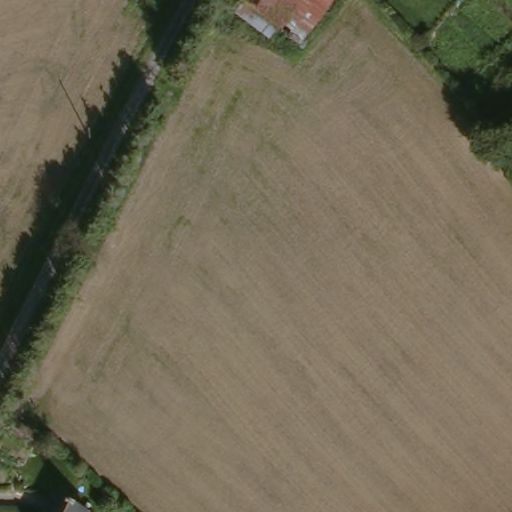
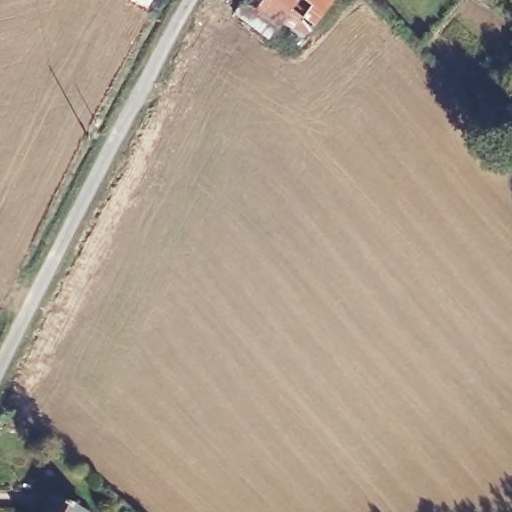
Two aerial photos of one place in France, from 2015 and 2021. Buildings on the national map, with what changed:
unchanged [(240,0),(337,0),(301,50),(237,3),(240,0)]
unchanged [(56,503),(74,512),(52,512),(56,503)]

